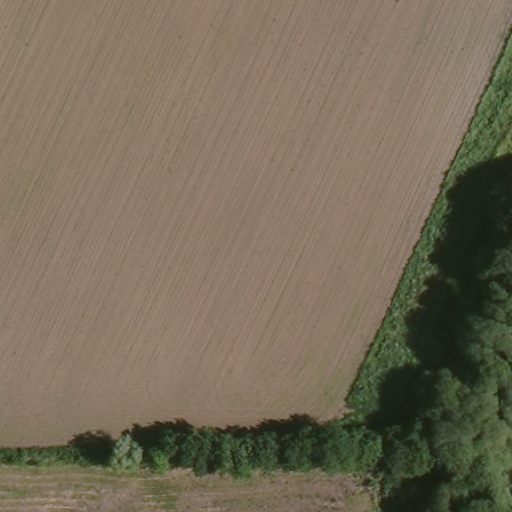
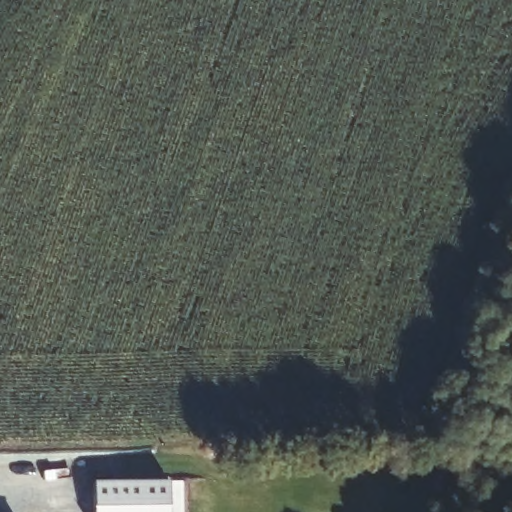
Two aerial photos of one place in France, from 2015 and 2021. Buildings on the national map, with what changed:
new [(170,512),(95,512),(94,479),(170,480),(170,512)]
demolished [(60,497),(108,495),(108,509),(61,511),(60,497)]

